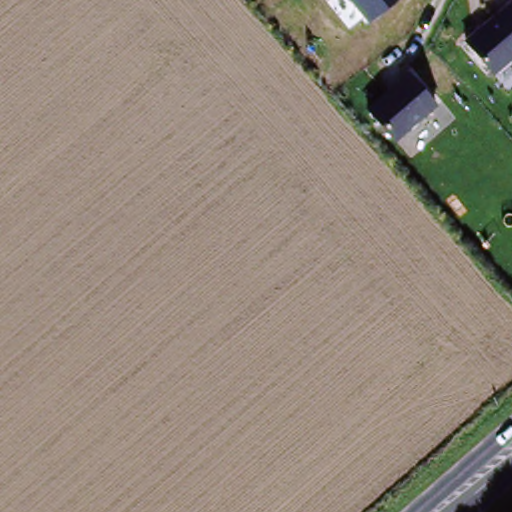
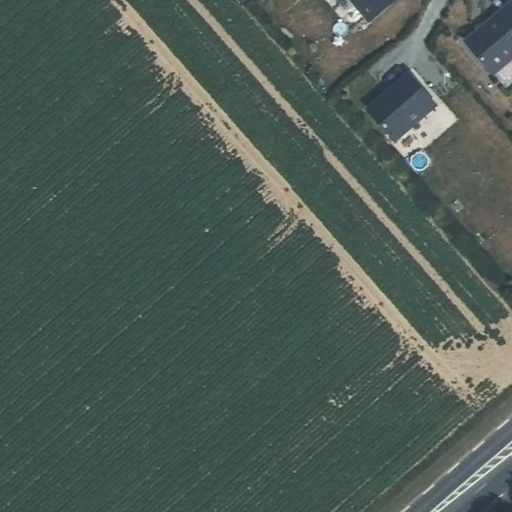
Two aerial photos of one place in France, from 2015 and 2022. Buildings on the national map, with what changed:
unchanged [(369,22),(351,0),(396,0),(369,22)]
unchanged [(494,77),(465,42),(512,4),(512,62),(494,77)]
unchanged [(439,109),(396,144),(366,109),(408,71),(439,109)]

